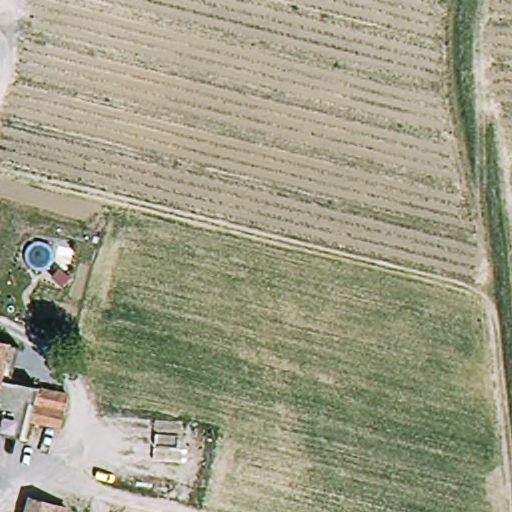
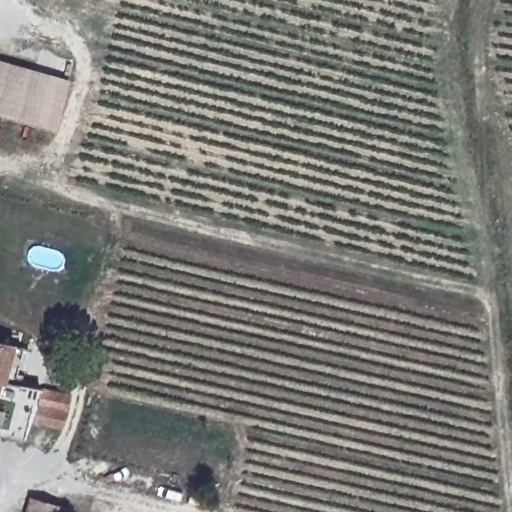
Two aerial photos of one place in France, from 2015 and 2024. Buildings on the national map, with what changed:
new [(53,129),(0,114),(0,61),(67,79),(53,129)]
unchanged [(0,371),(0,346),(7,347),(0,371)]
unchanged [(63,431),(42,427),(38,438),(25,436),(23,440),(0,434),(0,377),(71,397),(63,431)]
unchanged [(24,512),(28,499),(53,506),(51,512),(24,512)]

